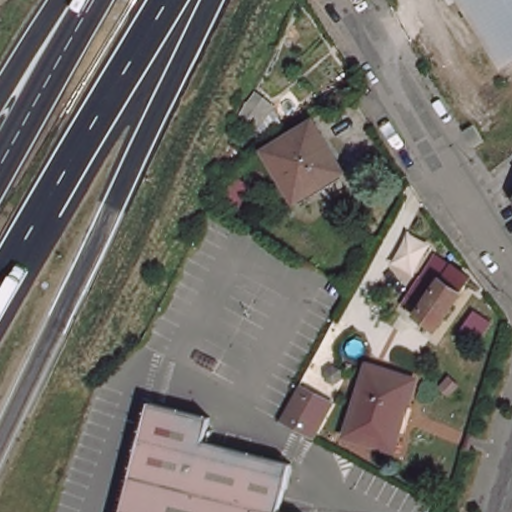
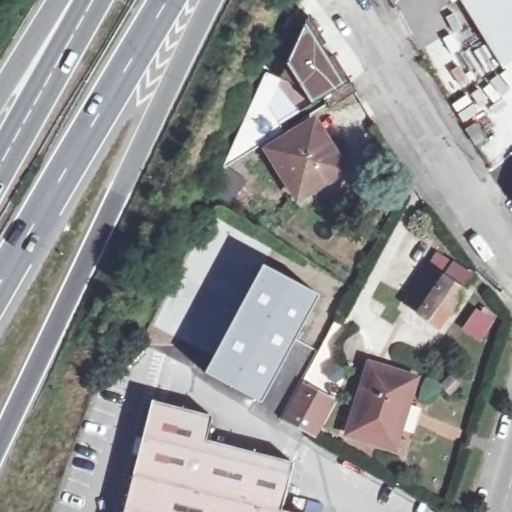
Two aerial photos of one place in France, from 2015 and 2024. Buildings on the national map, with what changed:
unchanged [(451,0),(457,0),(452,2),(451,0)]
unchanged [(461,0),(512,0),(512,61),(503,66),(461,0)]
new [(329,110),(323,99),(278,127),(266,107),(307,17),(319,36),(314,39),(328,60),(333,56),(349,82),(356,94),(329,110)]
unchanged [(313,122),(342,171),(341,173),(344,179),(326,190),(322,185),(298,200),(268,151),(313,122)]
unchanged [(512,190),(512,204),(506,194),(512,190)]
demolished [(214,254),(228,262),(216,281),(203,273),(214,254)]
unchanged [(414,316),(422,305),(419,303),(454,254),(474,267),(439,317),(432,328),(414,316)]
new [(262,263),(319,294),(261,405),(202,372),(262,263)]
unchanged [(372,365),(417,381),(394,450),(348,435),(372,365)]
unchanged [(301,382),(336,400),(318,437),(282,419),(301,382)]
unchanged [(151,406),(211,421),(205,445),(293,469),(281,512),(124,512),(151,406)]

